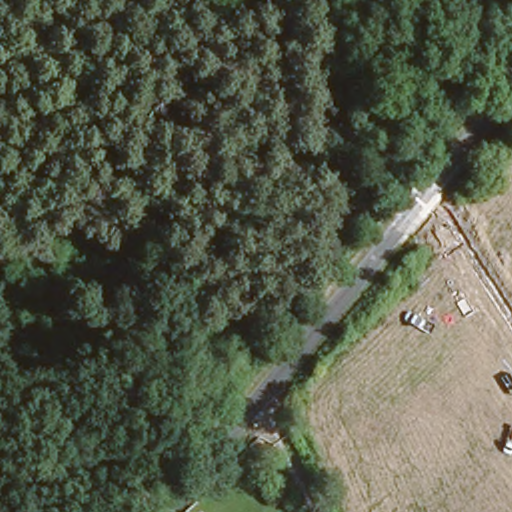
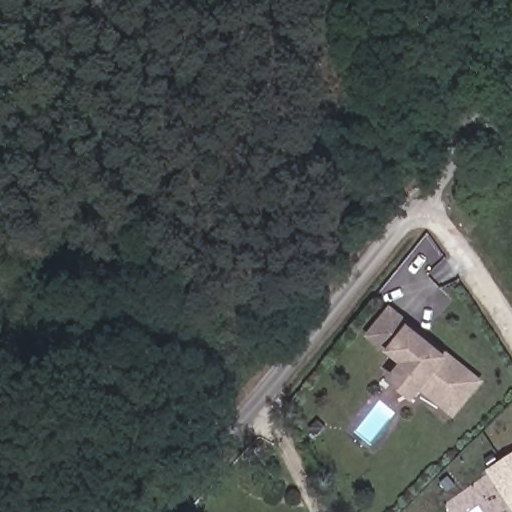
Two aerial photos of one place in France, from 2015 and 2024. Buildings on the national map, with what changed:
new [(418,394),(411,403),(386,382),(400,366),(385,353),(364,337),(389,308),(408,325),(448,358),(482,383),(453,418),(418,394)]
new [(486,471),(512,455),(512,512),(486,471)]

